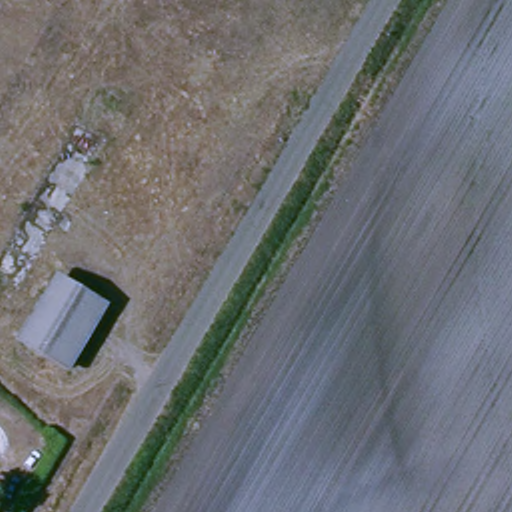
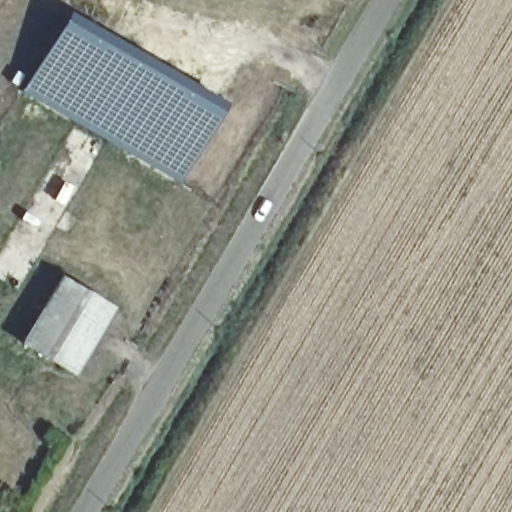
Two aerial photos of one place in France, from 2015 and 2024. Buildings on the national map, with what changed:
new [(15,70),(26,76),(66,10),(126,46),(223,101),(207,133),(176,182),(73,124),(18,90),(19,89),(8,81),(15,70)]
unchanged [(63,277),(107,303),(70,367),(24,342),(63,277)]

